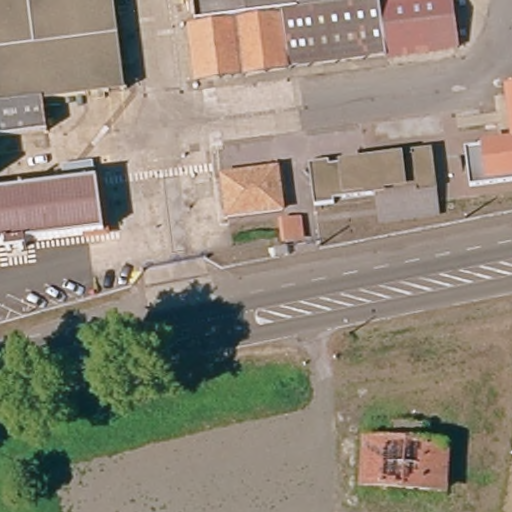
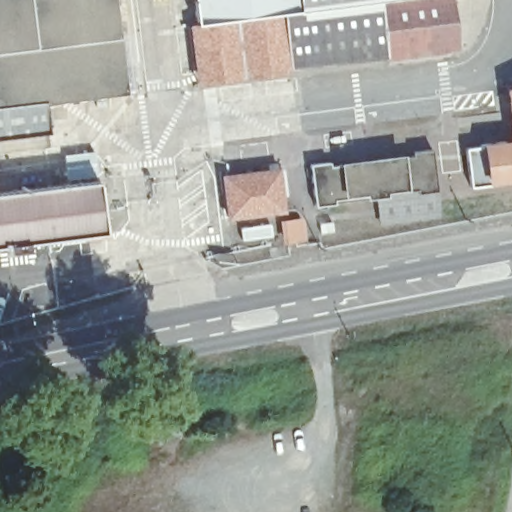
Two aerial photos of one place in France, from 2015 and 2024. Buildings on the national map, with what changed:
unchanged [(40,91),(44,121),(0,131),(0,0),(114,0),(124,81),(40,91)]
unchanged [(461,49),(209,83),(197,0),(459,0),(455,0),(461,49)]
unchanged [(473,178),(468,138),(512,132),(512,172),(473,178)]
unchanged [(439,190),(315,208),(308,160),(432,142),(439,190)]
unchanged [(101,219),(0,237),(0,180),(91,164),(101,219)]
unchanged [(283,209),(232,219),(223,177),(274,167),(283,209)]
demolished [(202,217),(189,219),(182,183),(195,180),(202,217)]
demolished [(213,202),(205,204),(202,192),(210,190),(213,202)]
demolished [(372,443),(392,446),(393,435),(395,424),(427,427),(426,439),(425,449),(448,451),(446,468),(370,455),(372,443)]
demolished [(366,485),(370,455),(446,468),(442,493),(366,485)]

